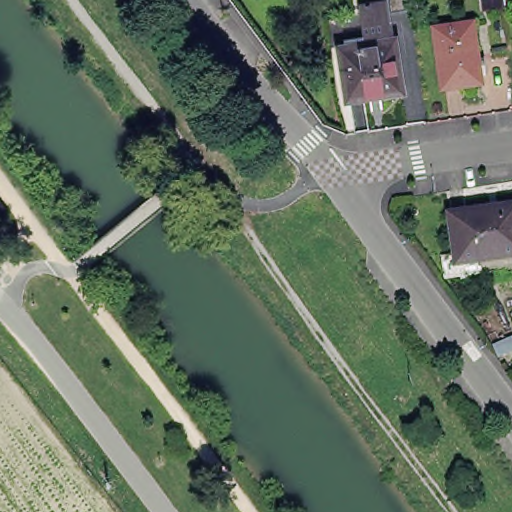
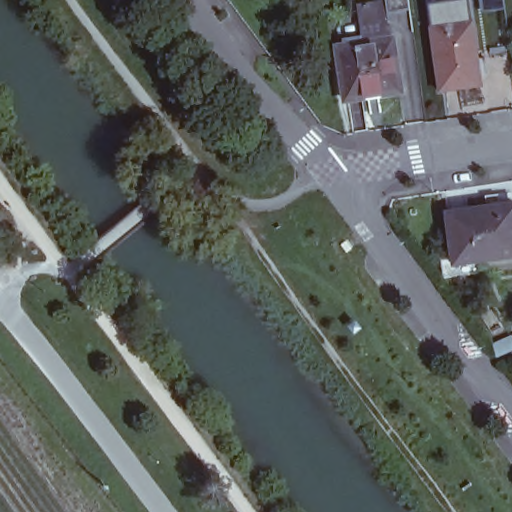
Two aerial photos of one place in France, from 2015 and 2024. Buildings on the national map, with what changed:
unchanged [(390,0),(410,0),(412,10),(391,11),(390,0)]
unchanged [(469,19),(478,80),(437,86),(429,25),(469,19)]
unchanged [(389,35),(397,87),(343,95),(334,42),(389,35)]
unchanged [(450,272),(448,250),(459,249),(454,210),(512,202),(512,252),(486,255),(488,268),(450,272)]

